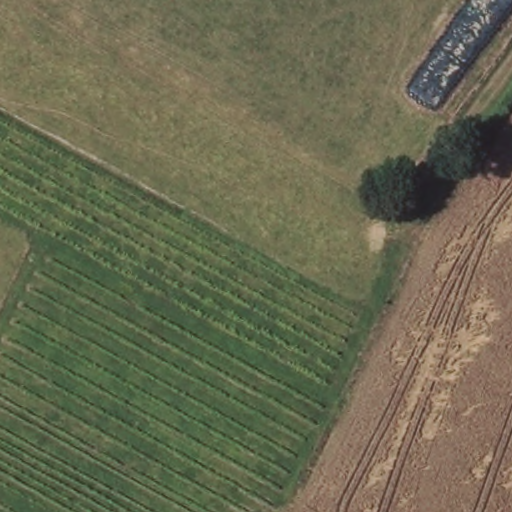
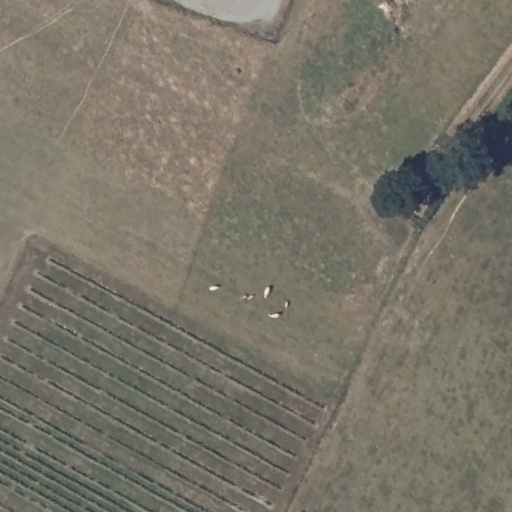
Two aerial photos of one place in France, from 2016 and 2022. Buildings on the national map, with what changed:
[]

